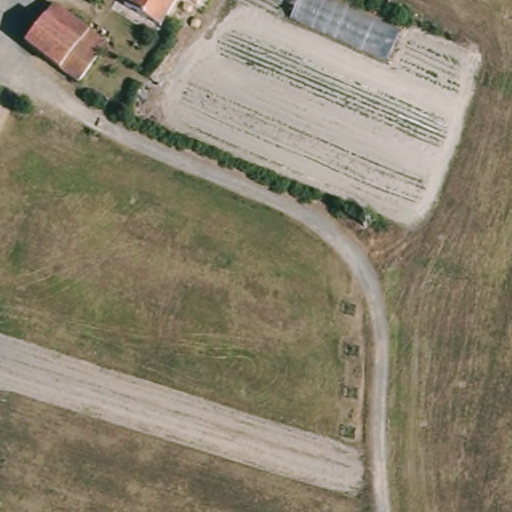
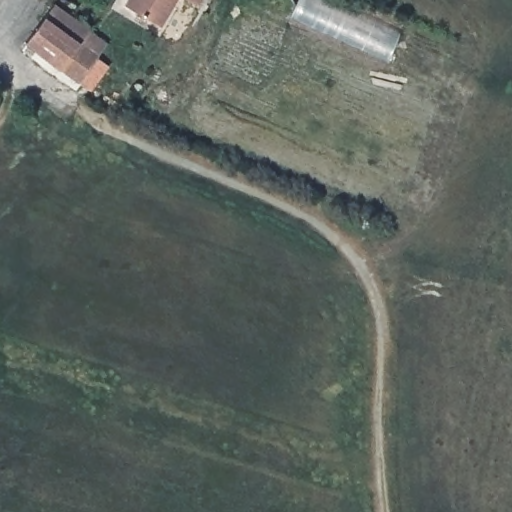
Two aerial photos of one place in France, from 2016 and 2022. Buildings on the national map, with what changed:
unchanged [(87,43),(102,53),(85,82),(81,80),(29,44),(58,0),(59,0),(97,27),(87,43)]
unchanged [(149,24),(124,11),(130,0),(180,0),(164,31),(149,24)]
unchanged [(206,0),(204,4),(197,0),(206,0)]
unchanged [(392,55),(293,14),(300,0),(334,0),(402,29),(392,55)]

